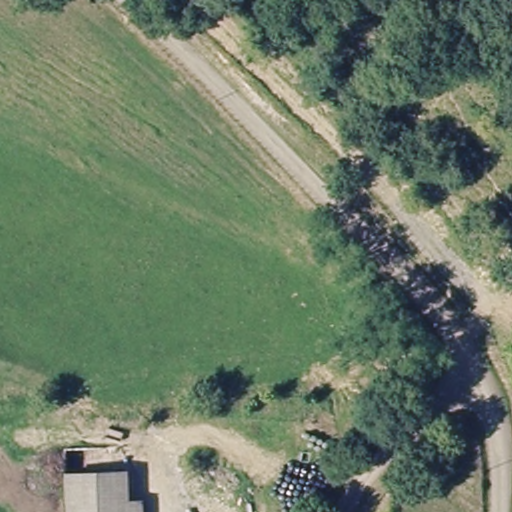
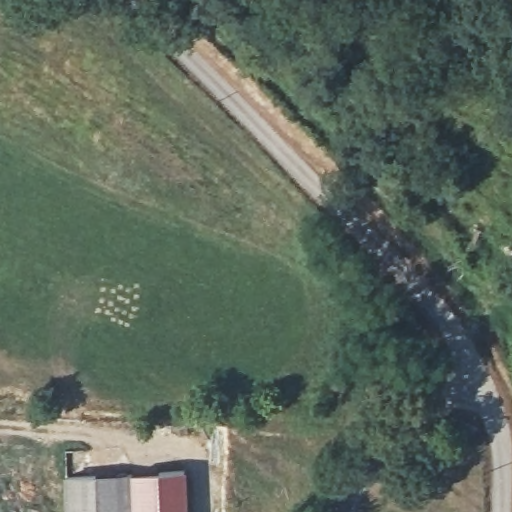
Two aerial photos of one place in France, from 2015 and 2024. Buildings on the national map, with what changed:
new [(126,474),(185,471),(187,512),(126,512),(126,508),(126,474)]
unchanged [(65,512),(64,475),(126,474),(126,508),(126,512),(65,512)]

